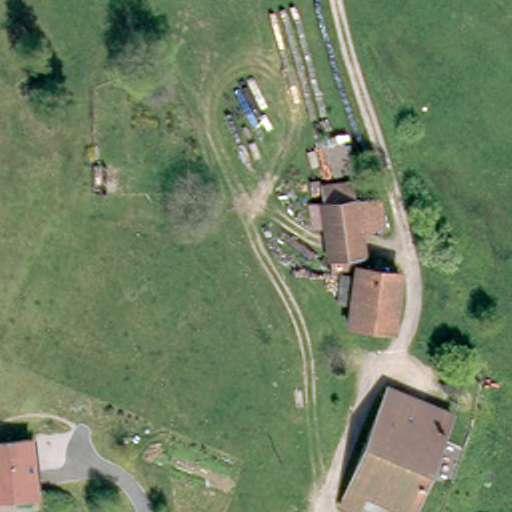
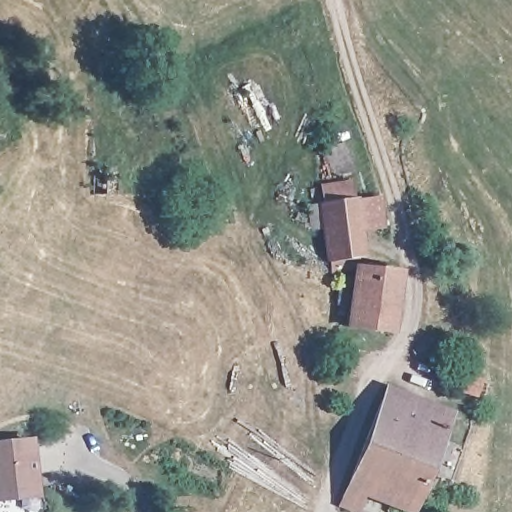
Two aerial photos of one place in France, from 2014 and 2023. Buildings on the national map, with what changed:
unchanged [(321,202),(319,183),(354,178),(357,199),(381,197),(385,227),(364,231),(367,255),(369,275),(341,273),(332,274),(331,261),(327,262),(324,228),(312,230),(309,204),(321,202)]
unchanged [(397,325),(341,323),(341,273),(397,276),(397,325)]
unchanged [(406,510),(365,491),(357,509),(337,501),(382,390),(442,413),(406,510)]
unchanged [(0,493),(0,439),(29,435),(37,487),(0,493)]

